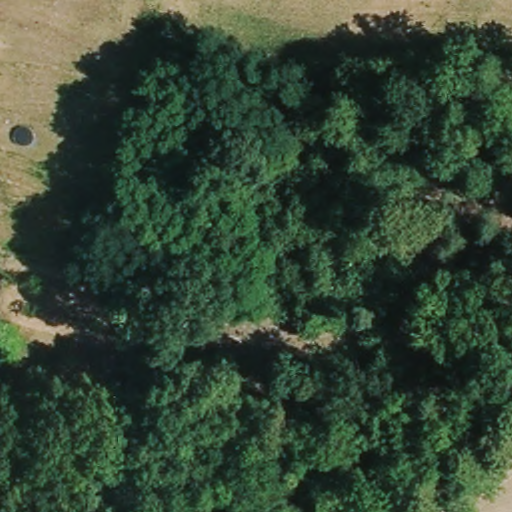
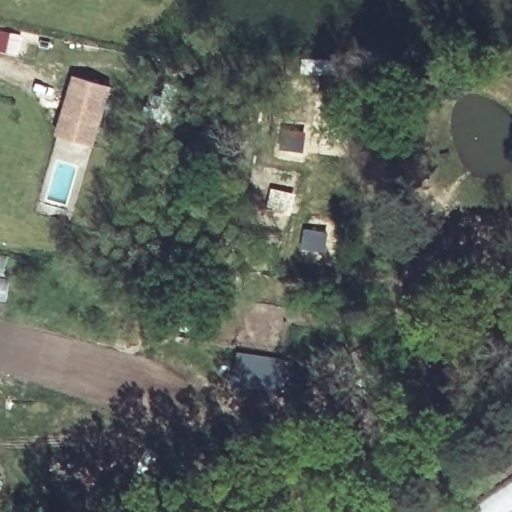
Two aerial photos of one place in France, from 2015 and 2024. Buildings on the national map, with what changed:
new [(75,76),(112,88),(95,145),(56,134),(75,76)]
unchanged [(145,330),(159,333),(152,353),(140,350),(145,330)]
unchanged [(6,512),(0,512),(0,476),(15,507),(6,512)]
new [(465,512),(512,480),(512,512),(465,512)]

